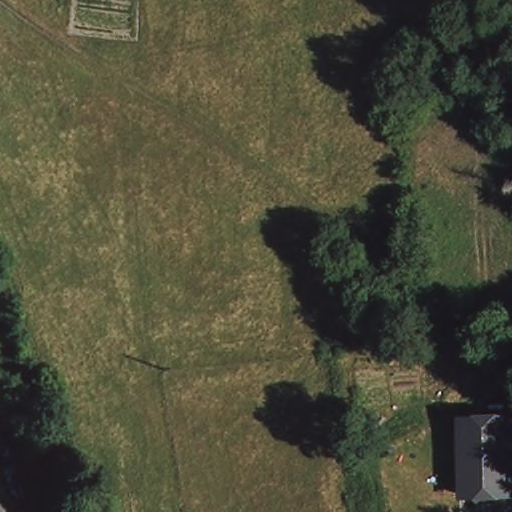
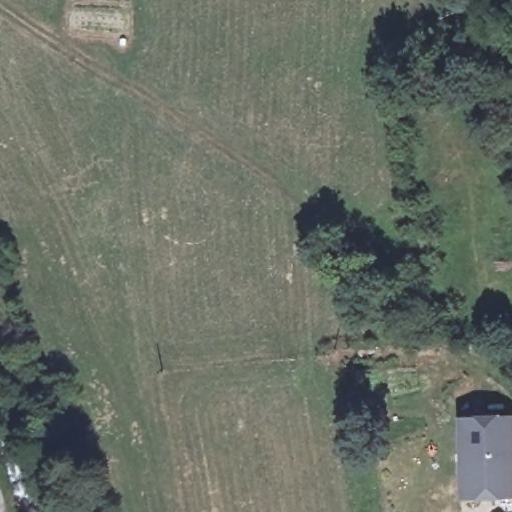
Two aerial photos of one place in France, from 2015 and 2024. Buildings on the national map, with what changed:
unchanged [(512,417),(512,512),(496,512),(495,496),(462,495),(462,421),(462,417),(482,417),(512,417)]

